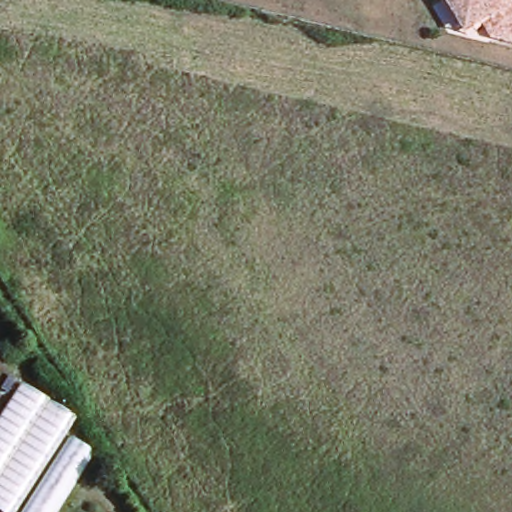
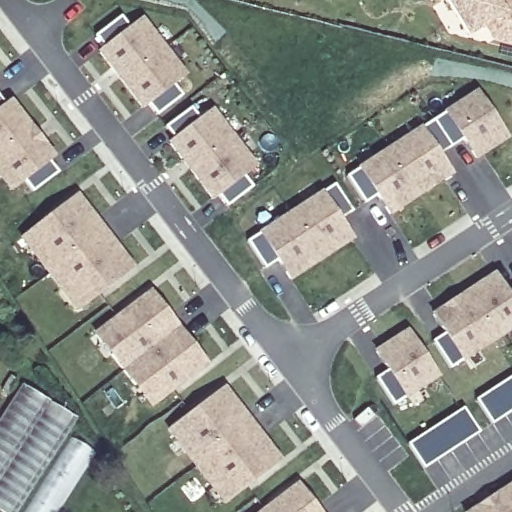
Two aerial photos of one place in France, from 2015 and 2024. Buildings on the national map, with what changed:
unchanged [(495,42),(487,27),(470,37),(449,0),(512,0),(512,46),(495,42)]
new [(122,13),(131,25),(142,16),(164,44),(122,76),(100,49),(105,45),(96,32),(122,13)]
new [(164,44),(185,72),(173,81),(182,93),(157,112),(147,100),(142,104),(122,76),(164,44)]
new [(462,139),(439,155),(454,174),(390,216),(377,196),(365,204),(347,176),(478,88),(510,138),(476,160),(462,139)]
new [(12,98),(33,126),(0,151),(0,93),(7,102),(12,98)]
new [(217,195),(212,200),(168,143),(175,138),(167,127),(192,108),(199,118),(214,109),(257,166),(244,176),(252,187),(227,206),(217,195)]
new [(54,153),(49,157),(59,170),(32,189),(23,177),(11,186),(0,172),(0,151),(33,126),(54,153)]
new [(340,217),(355,239),(291,280),(277,260),(265,268),(247,240),(335,183),(352,210),(340,217)]
new [(77,312),(21,238),(79,193),(134,267),(77,312)]
new [(450,369),(432,342),(444,333),(430,313),(495,271),(507,292),(512,289),(512,328),(450,369)]
new [(151,408),(94,333),(152,290),(207,364),(151,408)]
new [(394,404),(376,378),(387,370),(374,351),(409,328),(440,377),(405,397),(394,404)]
new [(512,374),(512,409),(491,422),(475,397),(512,374)]
unchanged [(79,420),(70,435),(95,454),(58,512),(0,512),(0,424),(25,386),(79,420)]
new [(224,505),(167,430),(225,386),(281,459),(224,505)]
new [(462,405),(479,430),(423,466),(407,442),(462,405)]
new [(320,512),(258,512),(297,482),(320,512)]
new [(468,512),(512,483),(512,512),(468,512)]

